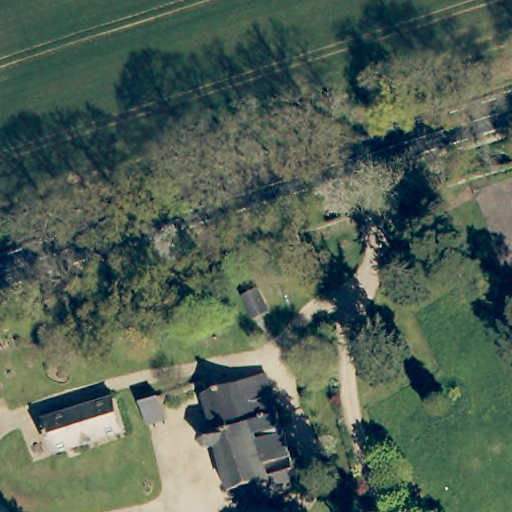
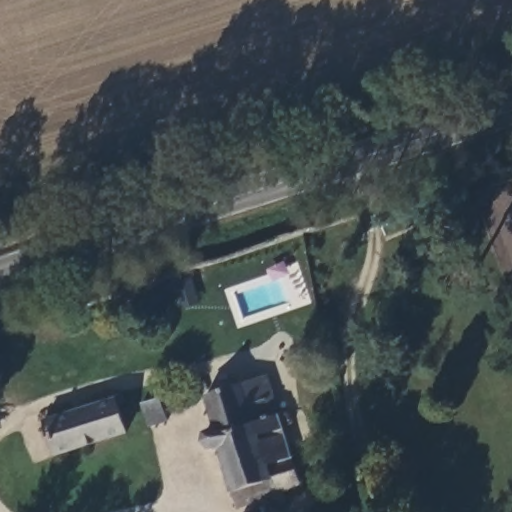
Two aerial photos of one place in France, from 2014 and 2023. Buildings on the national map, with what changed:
unchanged [(268,378),(302,490),(286,495),(290,507),(276,512),(271,500),(241,509),(223,447),(212,450),(206,447),(205,441),(207,435),(217,431),(207,397),(268,378)]
unchanged [(162,393),(169,417),(149,422),(142,399),(162,393)]
unchanged [(125,431),(55,453),(45,421),(115,398),(125,431)]

